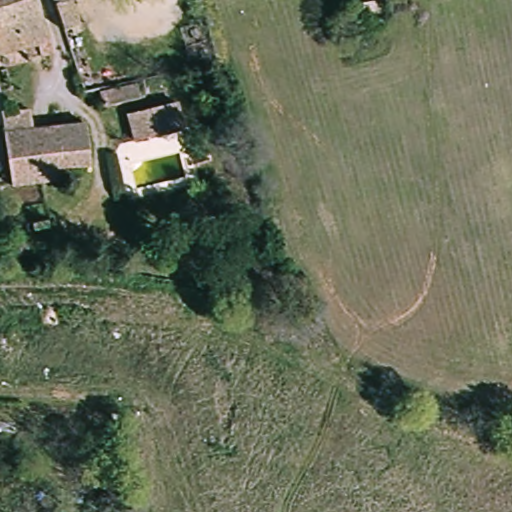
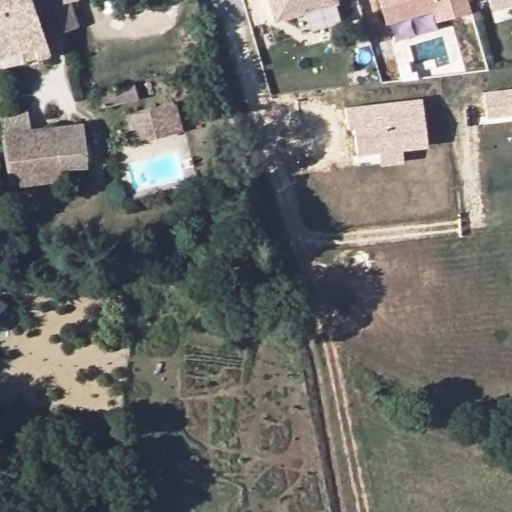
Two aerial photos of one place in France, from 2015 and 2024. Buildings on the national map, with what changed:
unchanged [(47,51),(0,64),(0,0),(30,0),(43,38),(47,51)]
unchanged [(72,28),(58,33),(47,0),(68,0),(63,1),(72,28)]
new [(277,20),(271,0),(338,0),(338,1),(277,20)]
new [(437,21),(433,11),(387,25),(379,0),(470,0),(472,10),(437,21)]
new [(491,0),(512,0),(512,2),(493,8),(491,0)]
demolished [(377,1),(383,35),(350,40),(343,6),(377,1)]
unchanged [(129,86),(130,86),(133,103),(93,112),(89,96),(129,86)]
new [(512,89),(512,88),(512,115),(487,119),(483,92),(512,89)]
new [(402,148),(404,162),(379,165),(377,151),(357,154),(353,127),(347,128),(345,105),(421,97),(426,145),(402,148)]
unchanged [(152,106),(159,133),(141,137),(135,111),(152,106)]
unchanged [(85,156),(87,169),(62,172),(63,183),(12,188),(2,136),(0,129),(0,118),(23,116),(25,133),(55,131),(55,113),(82,112),(85,156)]

